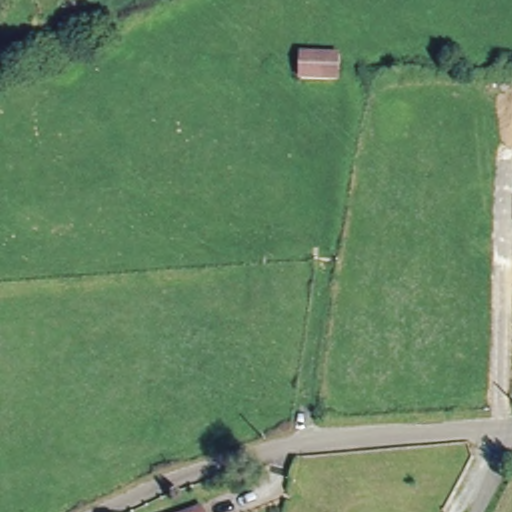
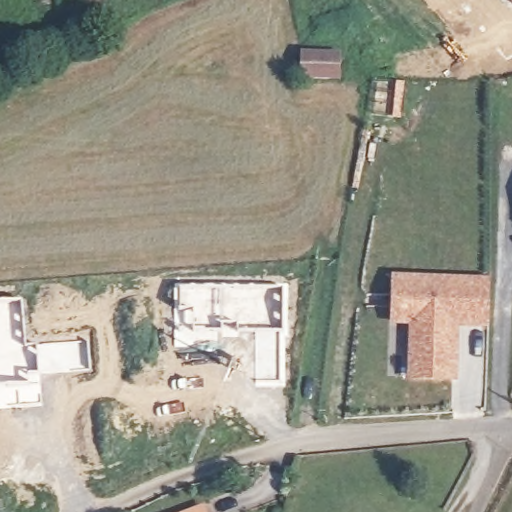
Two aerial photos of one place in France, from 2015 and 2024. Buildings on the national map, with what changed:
unchanged [(507,0),(512,0),(512,2),(510,3),(507,0)]
unchanged [(344,57),(344,82),(297,81),(298,56),(344,57)]
new [(411,320),(391,320),(393,278),(488,282),(486,324),(452,322),(450,363),(449,378),(408,376),(409,361),(411,320)]
new [(280,383),(255,384),(256,334),(238,333),(238,325),(222,324),(222,334),(193,334),(193,312),(179,311),(179,289),(283,290),(283,333),(279,333),(280,383)]
new [(0,384),(0,302),(22,300),(26,343),(88,340),(88,365),(37,370),(39,375),(0,384)]

